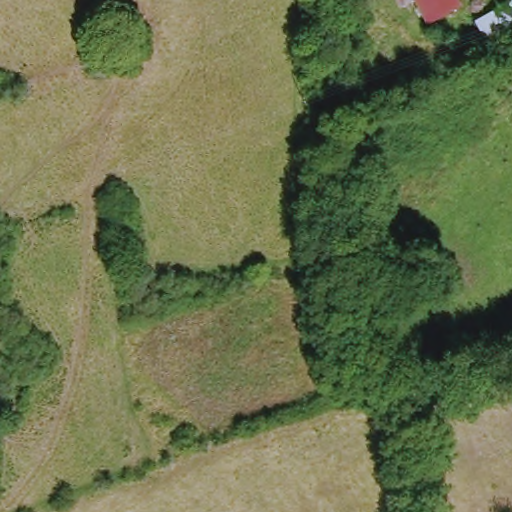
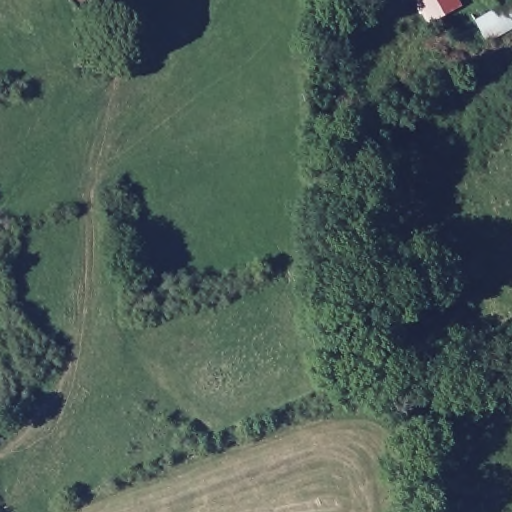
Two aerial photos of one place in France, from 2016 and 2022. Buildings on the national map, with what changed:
unchanged [(424,21),(413,0),(453,0),(456,5),(424,21)]

